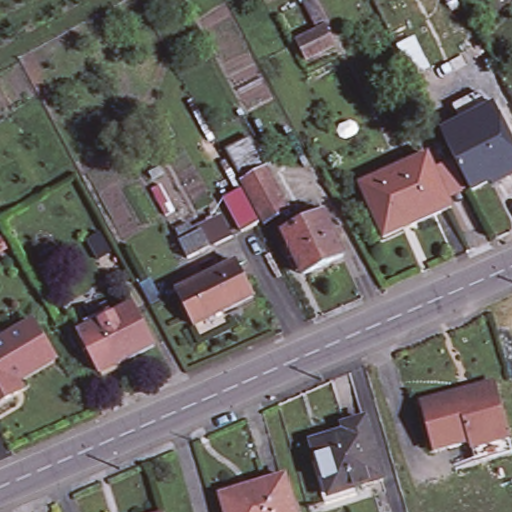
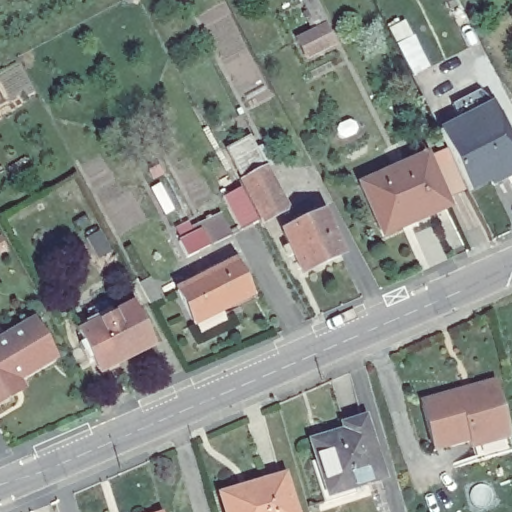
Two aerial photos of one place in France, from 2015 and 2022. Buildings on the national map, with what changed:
unchanged [(300,42),(326,28),(333,46),(307,60),(300,42)]
unchanged [(487,106),(494,102),(512,138),(512,176),(506,179),(499,176),(491,181),(470,192),(438,132),(459,121),(487,106)]
unchanged [(266,221),(246,184),(230,151),(254,137),(265,161),(270,170),(289,209),(266,221)]
unchanged [(455,207),(385,236),(361,184),(432,155),(438,168),(452,200),(455,207)]
unchanged [(243,235),(225,201),(244,190),(263,224),(243,235)]
unchanged [(210,244),(213,249),(189,258),(180,241),(174,227),(193,218),(197,225),(223,214),(234,236),(210,244)]
unchanged [(305,273),(285,233),(321,215),(341,255),(305,273)]
unchanged [(204,335),(197,322),(179,288),(239,258),(256,292),(228,306),(234,320),(204,335)]
unchanged [(154,350),(102,376),(81,335),(92,330),(86,318),(107,308),(112,320),(133,310),(154,350)]
unchanged [(19,395),(0,407),(0,333),(3,331),(7,337),(34,320),(56,358),(19,381),(25,391),(19,395)]
unchanged [(438,442),(424,394),(460,383),(492,375),(496,373),(499,381),(512,427),(512,444),(512,445),(479,453),(475,439),(474,432),(438,442)]
unchanged [(386,475),(358,483),(359,490),(328,500),(314,458),(320,455),(316,438),(348,427),(348,422),(368,415),(386,475)]
unchanged [(223,490),(286,472),(298,512),(229,512),(223,490)]
unchanged [(167,510),(167,512),(158,512),(167,510)]

